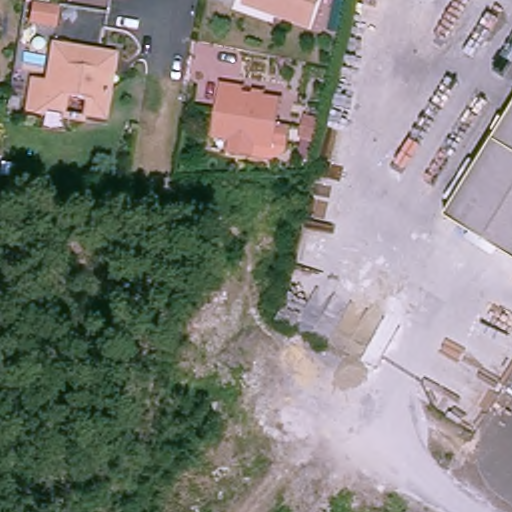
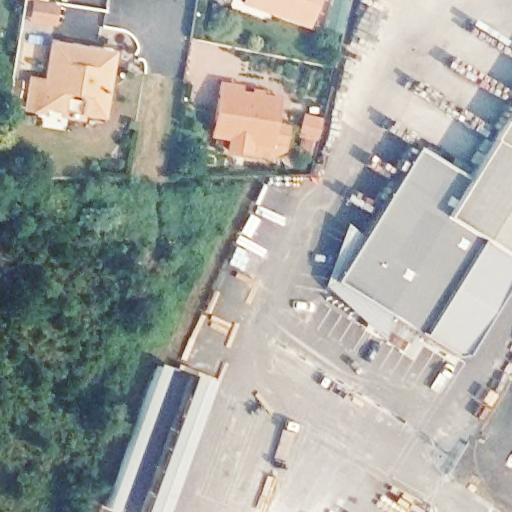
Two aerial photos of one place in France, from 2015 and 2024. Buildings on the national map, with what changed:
unchanged [(240,0),(313,0),(302,28),(269,15),(239,4),(240,0)]
unchanged [(54,28),(28,25),(28,2),(58,5),(54,28)]
unchanged [(112,55),(108,74),(103,78),(101,89),(106,90),(101,117),(80,113),(81,102),(79,99),(69,97),(65,99),(63,111),(43,107),(42,112),(26,109),(31,81),(46,83),(52,45),(112,55)]
unchanged [(230,149),(232,137),(214,135),(222,84),(241,87),(240,93),(278,99),(274,123),(289,125),(286,145),(271,143),(271,144),(252,141),(250,153),(230,149)]
unchanged [(512,104),(512,261),(442,217),(512,104)]
unchanged [(321,127),(318,138),(317,143),(300,139),(304,123),(321,127)]
new [(442,217),(512,261),(512,277),(467,352),(454,356),(334,282),(416,148),(466,179),(442,217)]
new [(113,512),(105,509),(157,363),(165,366),(113,512)]
new [(213,381),(165,512),(144,512),(194,374),(213,381)]

